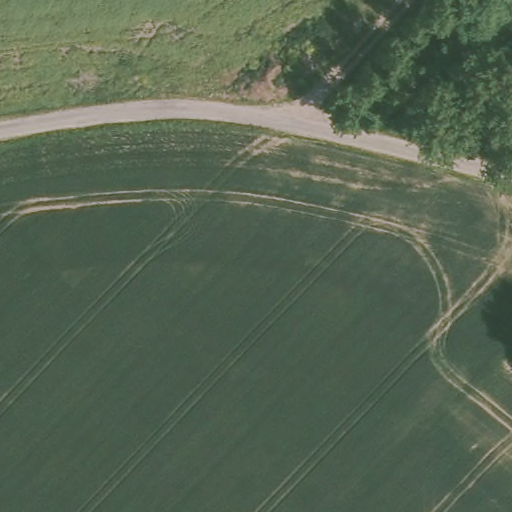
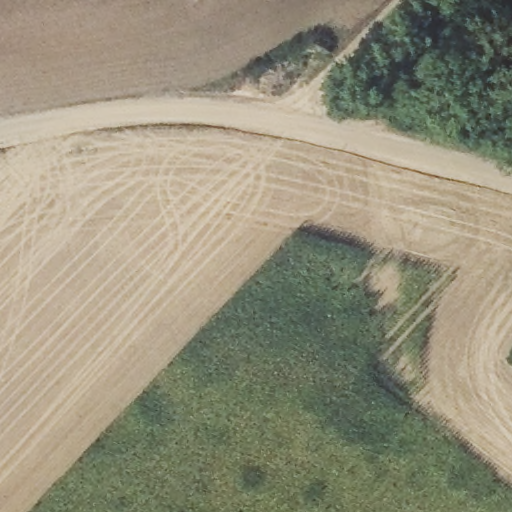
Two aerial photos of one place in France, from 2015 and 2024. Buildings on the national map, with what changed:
unchanged [(495,62),(512,71),(512,85),(502,104),(481,90),(495,62)]

